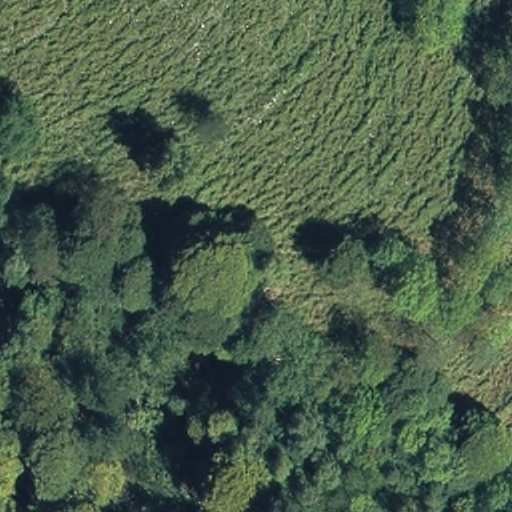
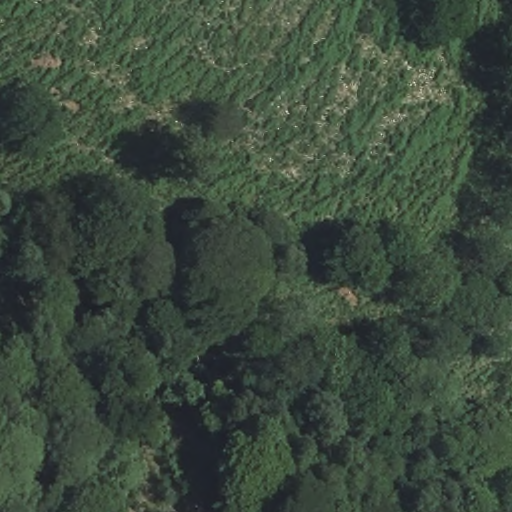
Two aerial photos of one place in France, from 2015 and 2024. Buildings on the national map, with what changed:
[]

